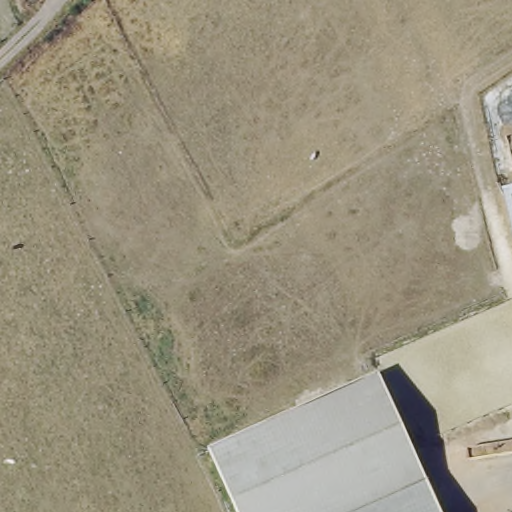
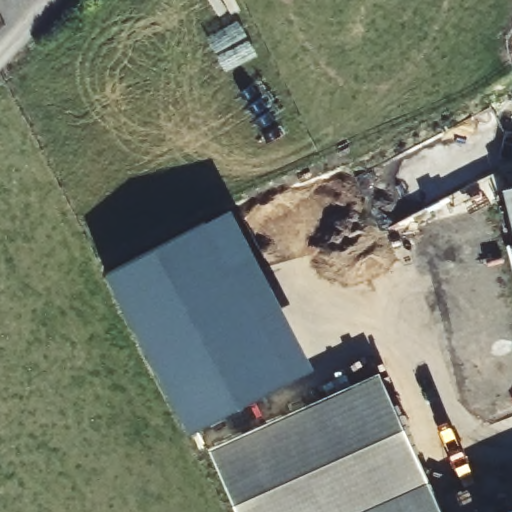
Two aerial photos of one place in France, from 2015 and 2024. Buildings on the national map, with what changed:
unchanged [(512,187),(512,224),(504,188),(512,187)]
new [(230,208),(314,366),(190,432),(105,274),(156,247),(230,208)]
unchanged [(241,512),(207,448),(377,370),(427,484),(364,512),(241,512)]
unchanged [(440,512),(364,512),(427,484),(440,512)]

